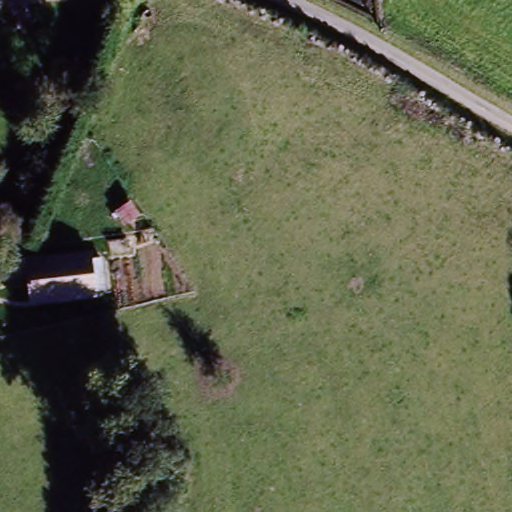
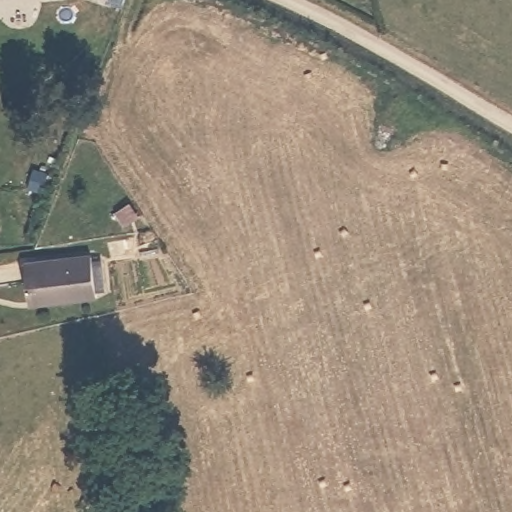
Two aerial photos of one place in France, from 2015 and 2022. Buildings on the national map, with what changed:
unchanged [(23,305),(13,267),(77,251),(90,289),(85,290),(23,305)]

